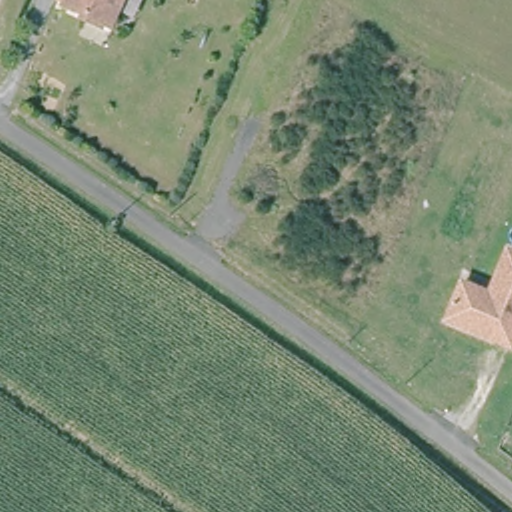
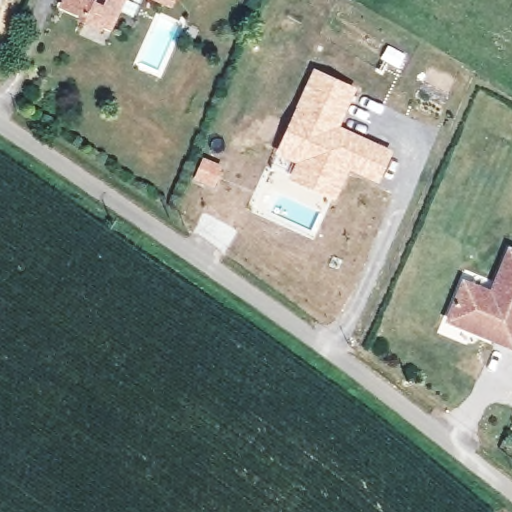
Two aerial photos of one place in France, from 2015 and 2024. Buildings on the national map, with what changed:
unchanged [(123,0),(114,19),(75,0),(123,0)]
new [(312,67),(355,87),(339,126),(392,150),(378,182),(348,169),(334,198),(288,177),(295,162),(274,153),(312,67)]
unchanged [(450,325),(465,286),(493,298),(512,255),(512,348),(498,342),(475,333),(450,325)]

